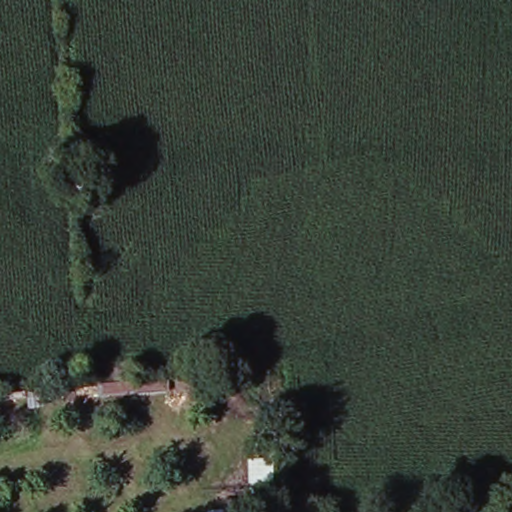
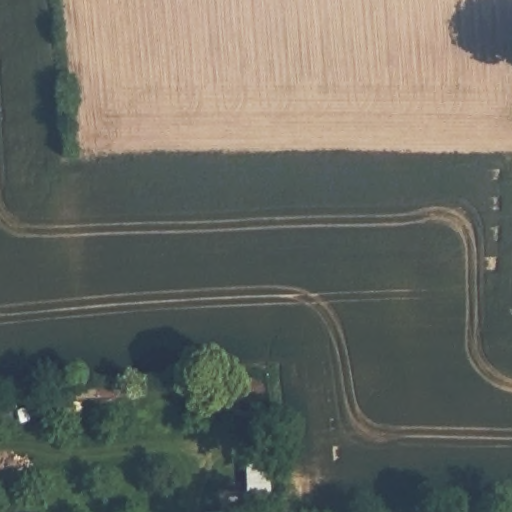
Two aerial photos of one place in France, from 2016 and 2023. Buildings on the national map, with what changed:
unchanged [(248,512),(249,451),(270,453),(270,508),(270,512),(248,512)]

